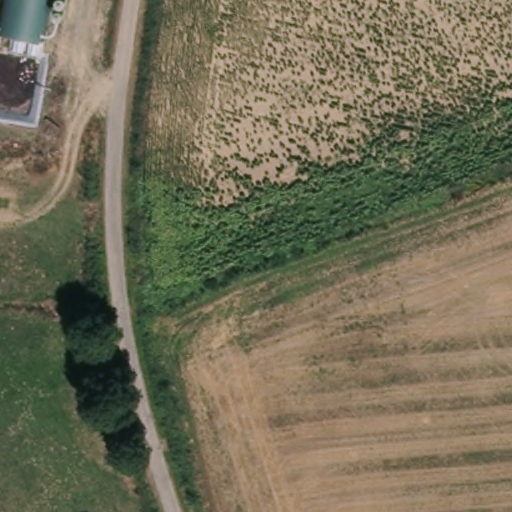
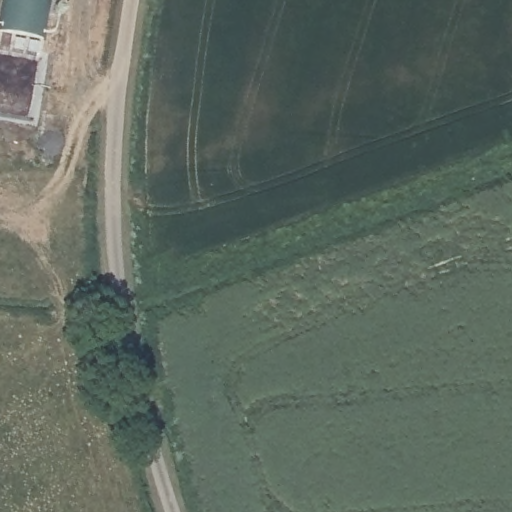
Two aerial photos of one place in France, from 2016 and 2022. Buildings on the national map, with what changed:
unchanged [(52,0),(44,42),(0,35),(0,20),(4,0),(52,0)]

